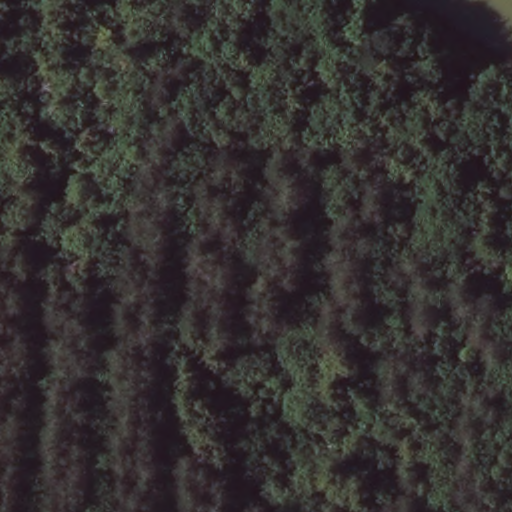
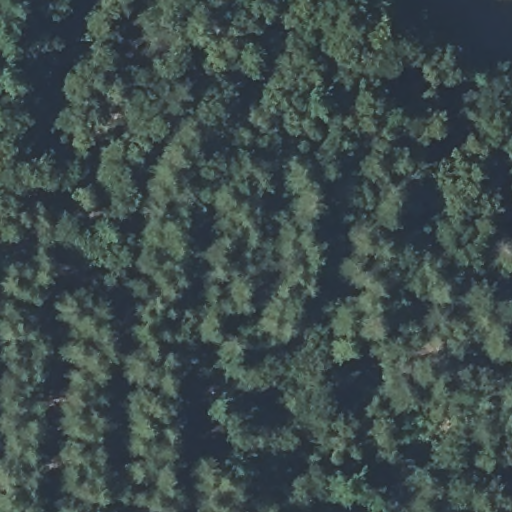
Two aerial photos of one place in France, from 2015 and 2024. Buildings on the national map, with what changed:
[]

